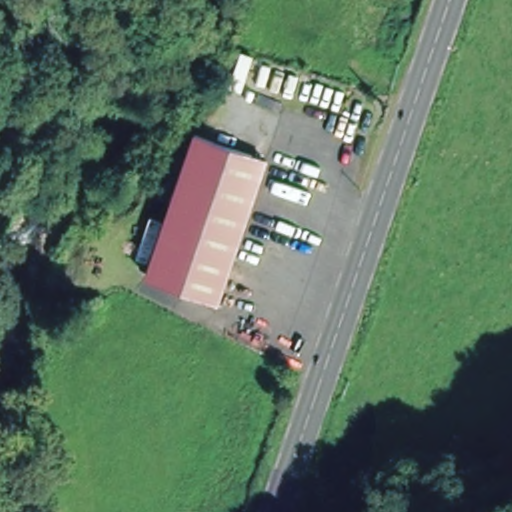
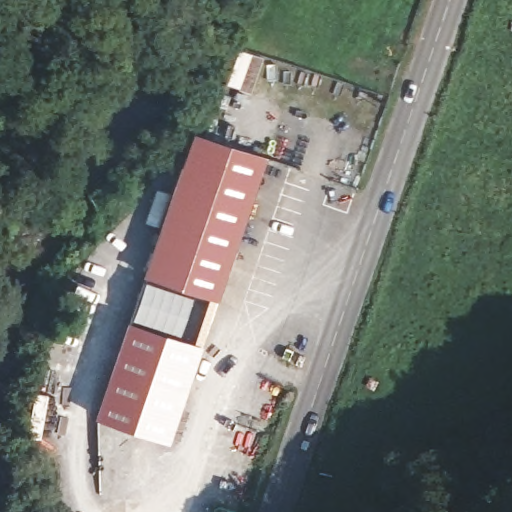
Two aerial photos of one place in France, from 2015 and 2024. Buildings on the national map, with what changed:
unchanged [(196,126),(268,150),(219,294),(148,270),(183,168),(171,164),(177,149),(186,152),(196,126)]
new [(193,297),(180,336),(132,320),(145,281),(193,297)]
new [(204,346),(171,443),(96,416),(128,320),(204,346)]

